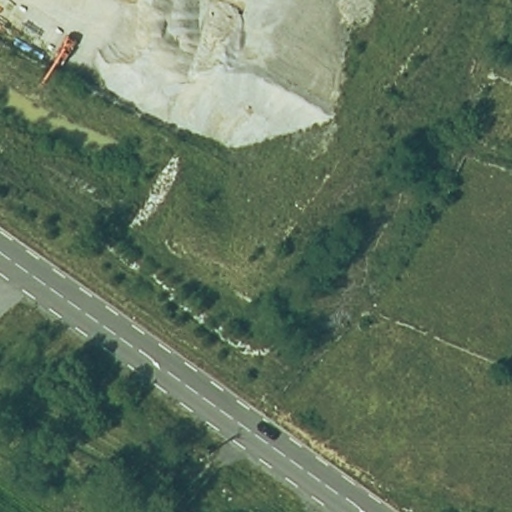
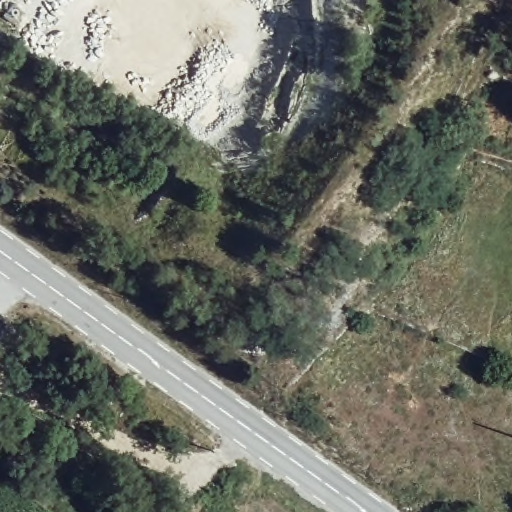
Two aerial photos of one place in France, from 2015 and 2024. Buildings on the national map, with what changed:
[]

